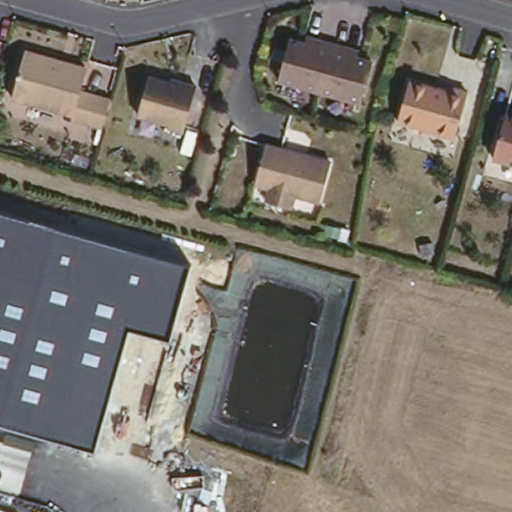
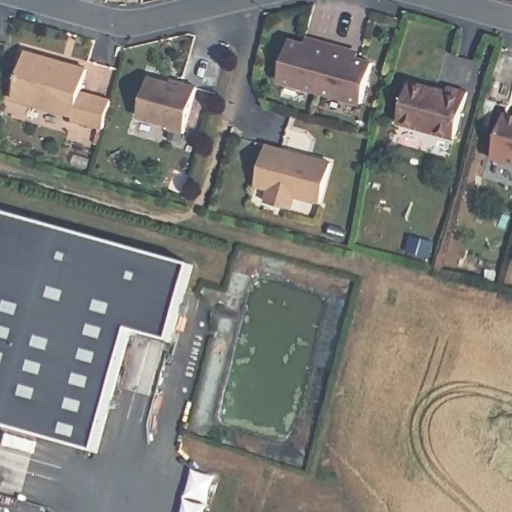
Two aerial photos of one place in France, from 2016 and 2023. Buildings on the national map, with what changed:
unchanged [(290,35),(316,43),(318,36),(347,45),(346,51),(372,59),(361,99),(278,75),(290,35)]
unchanged [(106,127),(75,119),(77,115),(15,100),(27,52),(88,67),(82,89),(114,96),(106,127)]
unchanged [(468,89),(457,134),(397,121),(411,73),(468,89)]
unchanged [(183,132),(167,128),(169,124),(137,116),(146,78),(178,85),(179,82),(195,85),(183,132)]
unchanged [(503,116),(512,118),(512,165),(491,159),(503,116)]
unchanged [(330,161),(321,202),(295,196),(292,209),(267,204),(270,190),(255,187),(264,147),(330,161)]
unchanged [(170,340),(130,330),(96,450),(0,425),(0,211),(191,264),(170,340)]

